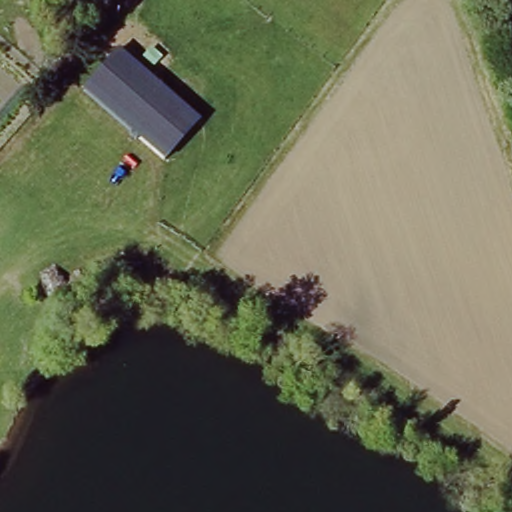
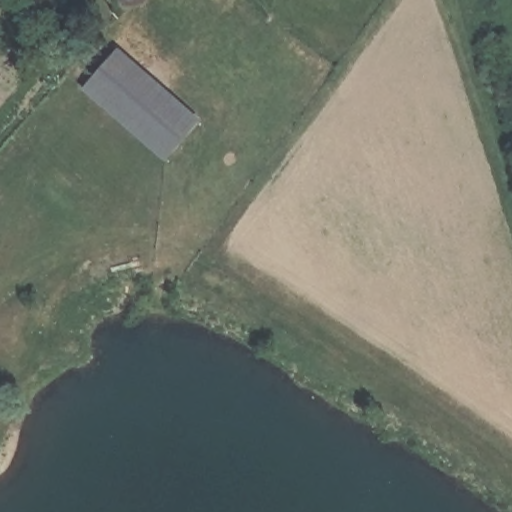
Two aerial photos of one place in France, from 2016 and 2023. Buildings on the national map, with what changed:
unchanged [(201,121),(165,163),(81,91),(116,49),(201,121)]

